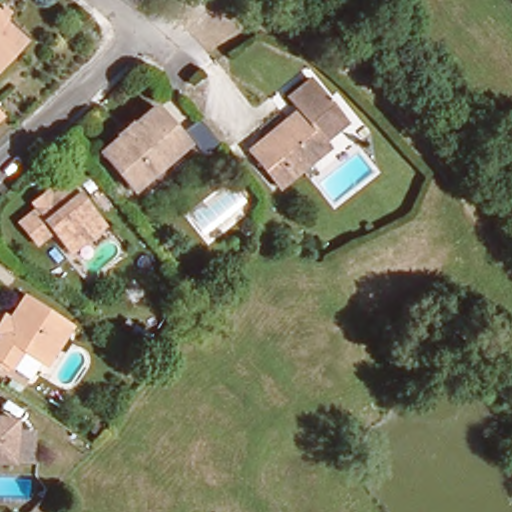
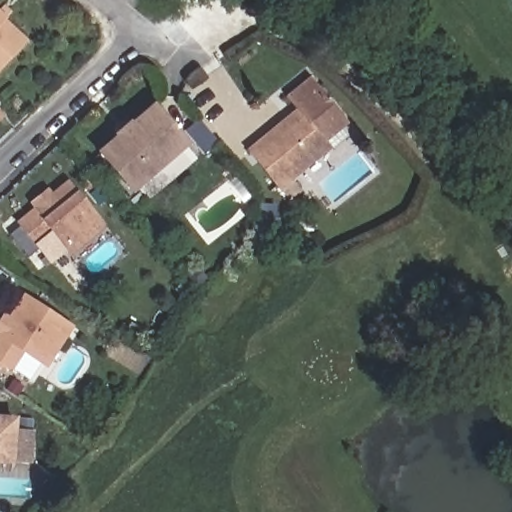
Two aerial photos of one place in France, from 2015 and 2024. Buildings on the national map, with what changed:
unchanged [(3,1),(9,6),(2,13),(25,34),(0,62),(0,4),(3,1)]
unchanged [(314,163),(311,159),(279,185),(250,149),(283,122),(298,109),(289,98),(312,79),(344,120),(323,137),(329,144),(332,148),(314,163)]
unchanged [(184,148),(132,190),(101,153),(153,110),(184,148)]
unchanged [(66,252),(62,247),(48,230),(32,244),(15,224),(33,208),(28,203),(40,192),(45,198),(62,183),(93,220),(97,225),(66,252)]
unchanged [(50,369),(43,364),(32,381),(14,369),(0,359),(0,342),(4,335),(0,333),(0,330),(8,318),(13,322),(28,299),(69,326),(74,329),(50,369)]
unchanged [(29,463),(10,462),(0,461),(0,415),(13,416),(12,437),(31,438),(29,463)]

